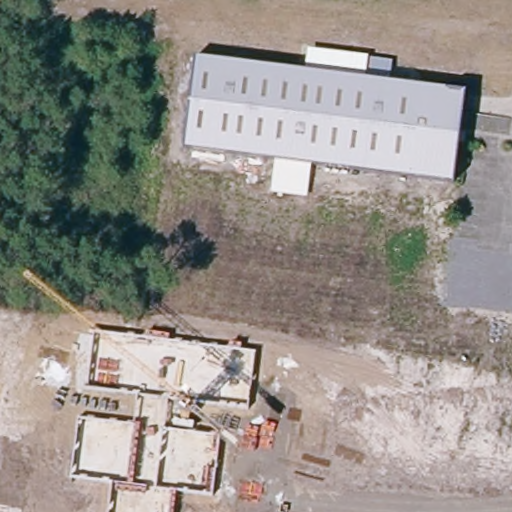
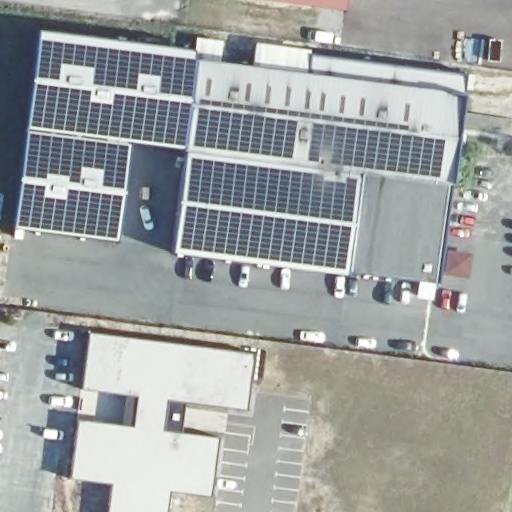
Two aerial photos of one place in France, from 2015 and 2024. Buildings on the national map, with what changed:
new [(269,0),(347,0),(346,10),(269,0)]
new [(194,50),(192,60),(196,61),(186,149),(130,142),(118,242),(14,229),(40,31),(194,50)]
new [(468,75),(467,89),(309,72),(312,52),(468,75)]
unchanged [(361,171),(186,153),(196,61),(467,89),(462,154),(460,181),(452,180),(438,282),(349,271),(361,171)]
new [(362,171),(349,271),(349,277),(172,253),(186,153),(362,171)]
new [(170,399),(166,429),(220,437),(213,496),(172,490),(169,512),(108,512),(111,484),(71,478),(78,419),(134,426),(137,395),(83,388),(90,332),(256,353),(250,409),(170,399)]

